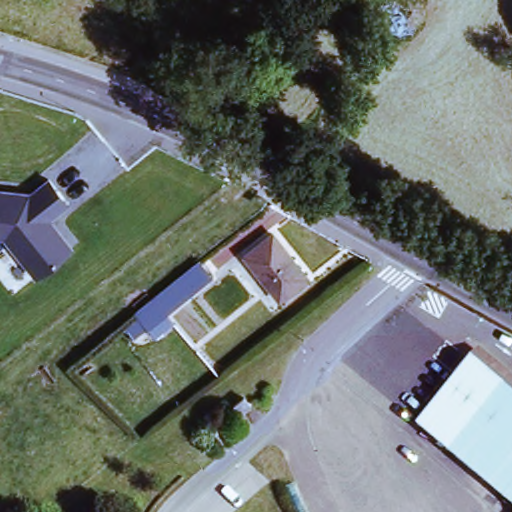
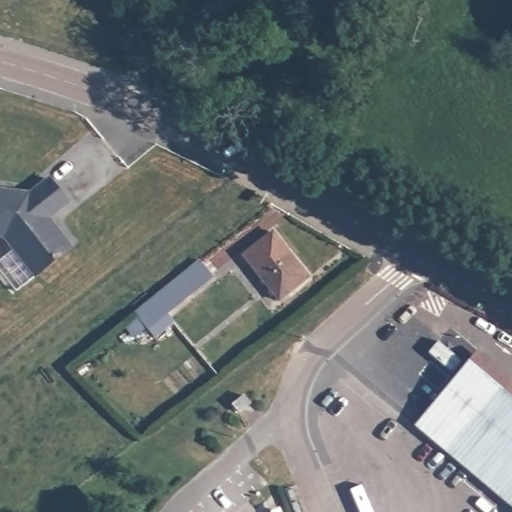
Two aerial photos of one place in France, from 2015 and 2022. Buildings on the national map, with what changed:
unchanged [(28,194),(47,179),(65,202),(42,220),(49,228),(52,226),(69,247),(35,275),(2,235),(0,235),(0,189),(28,194)]
unchanged [(307,278),(280,299),(247,257),(273,236),(307,278)]
unchanged [(150,343),(143,334),(131,319),(195,269),(207,284),(162,320),(169,328),(150,343)]
unchanged [(478,368),(512,396),(512,503),(426,430),(478,368)]

